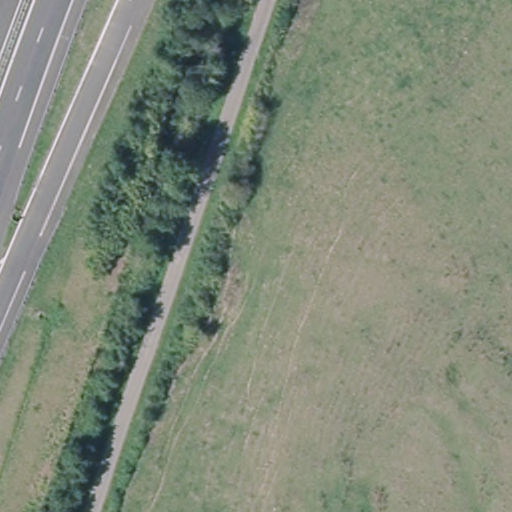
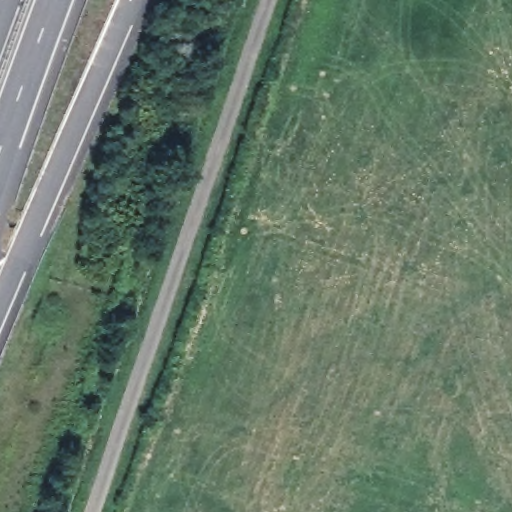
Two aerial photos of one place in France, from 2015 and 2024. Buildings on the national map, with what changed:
[]

